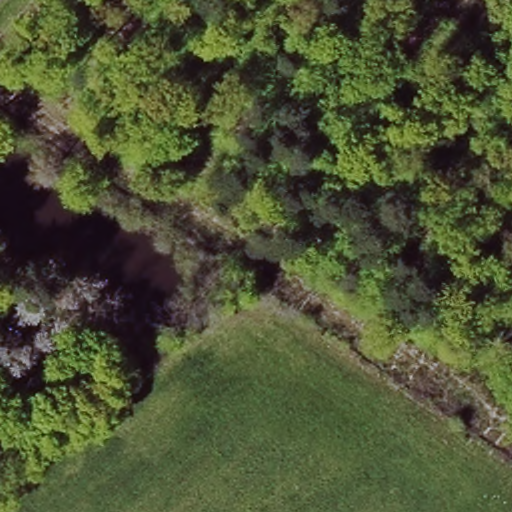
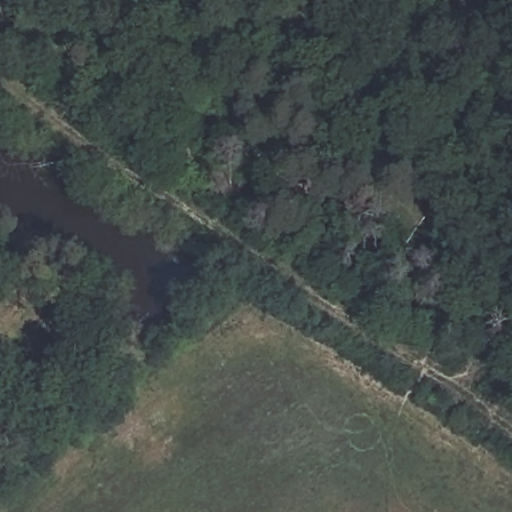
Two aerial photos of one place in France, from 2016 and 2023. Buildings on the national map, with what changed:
[]

